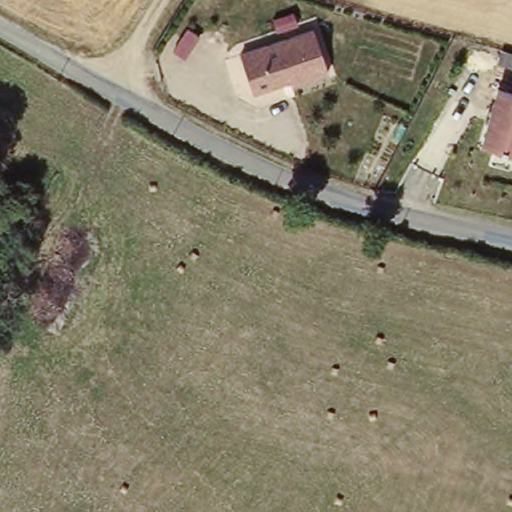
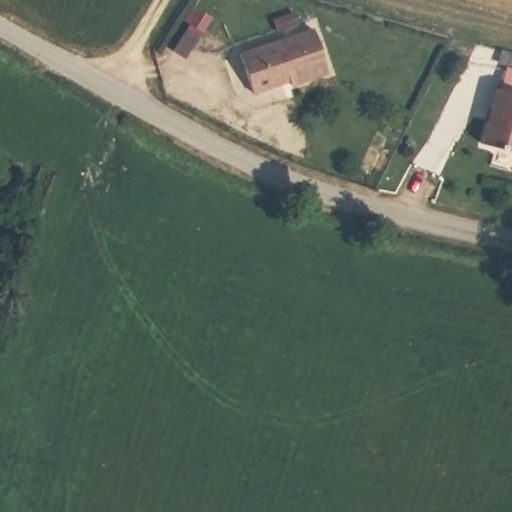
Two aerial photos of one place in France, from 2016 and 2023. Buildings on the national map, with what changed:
unchanged [(255,90),(240,49),(316,25),(329,70),(255,90)]
unchanged [(495,80),(512,83),(512,148),(478,140),(495,80)]

